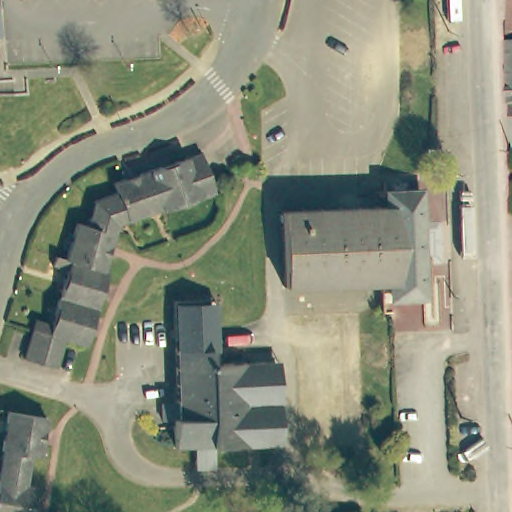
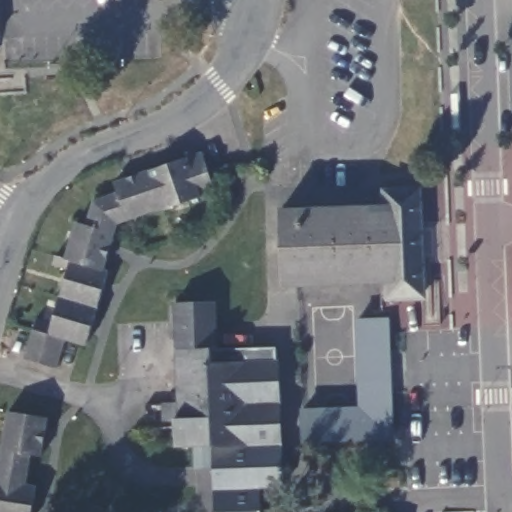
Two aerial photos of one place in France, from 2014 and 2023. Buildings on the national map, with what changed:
unchanged [(510,42),(512,42),(512,105),(511,105),(510,42)]
demolished [(512,125),(511,105),(512,104),(512,125)]
unchanged [(70,338),(65,337),(57,366),(45,362),(26,357),(34,331),(35,327),(37,318),(53,323),(69,269),(55,265),(57,255),(68,258),(78,222),(89,225),(96,201),(120,193),(116,183),(128,179),(141,175),(155,170),(164,167),(176,162),(191,157),(202,154),(212,185),(213,186),(215,194),(201,199),(165,211),(165,209),(117,225),(115,235),(111,246),(107,258),(105,268),(109,269),(105,283),(101,297),(95,320),(91,332),(88,343),(70,338)]
unchanged [(382,297),(381,283),(285,286),(282,210),(386,206),(385,190),(418,190),(422,297),(382,297)]
unchanged [(189,467),(188,445),(169,445),(168,417),(174,417),(172,299),(207,298),(207,301),(212,301),(214,362),(242,362),(242,363),(263,362),(274,362),(275,425),(275,445),(265,445),(244,446),(208,447),(209,467),(189,467)]
new [(390,318),(393,440),(300,445),(299,410),(358,407),(355,318),(390,318)]
unchanged [(35,419),(44,421),(41,434),(40,447),(37,460),(26,458),(24,473),(21,488),(32,490),(30,502),(28,512),(0,512),(0,447),(5,414),(35,419)]
new [(285,487),(261,489),(261,512),(215,512),(214,493),(212,447),(244,446),(265,445),(275,445),(282,445),(285,487)]

